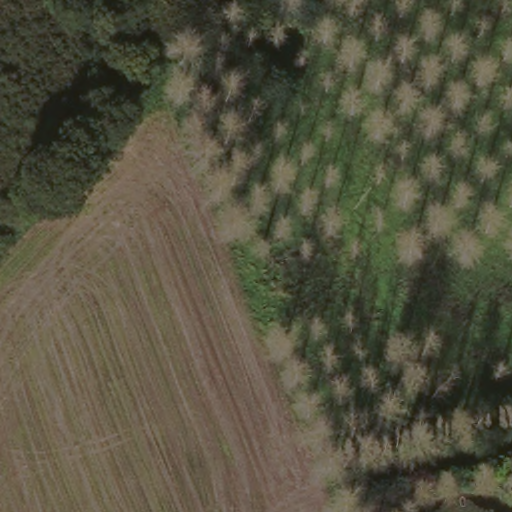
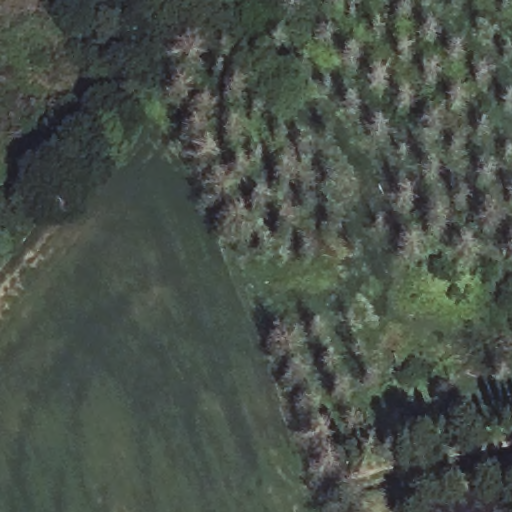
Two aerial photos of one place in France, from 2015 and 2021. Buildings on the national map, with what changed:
[]

